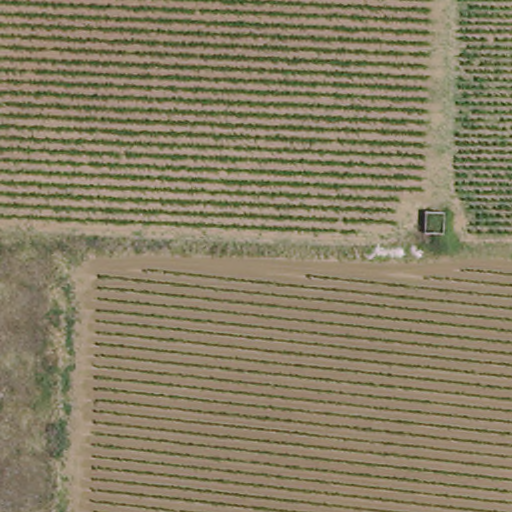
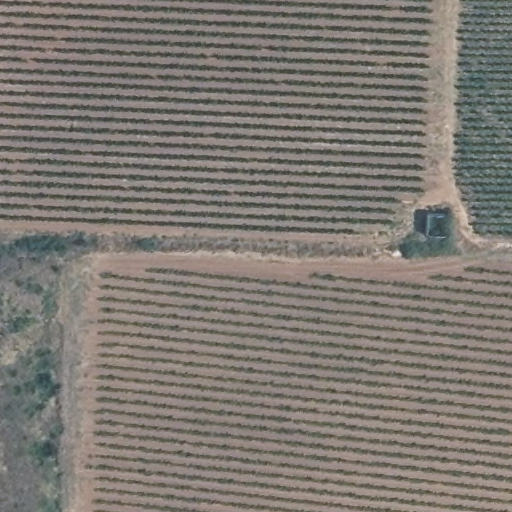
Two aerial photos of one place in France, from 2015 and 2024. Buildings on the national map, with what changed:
unchanged [(446,211),(446,233),(426,232),(426,211),(446,211)]

